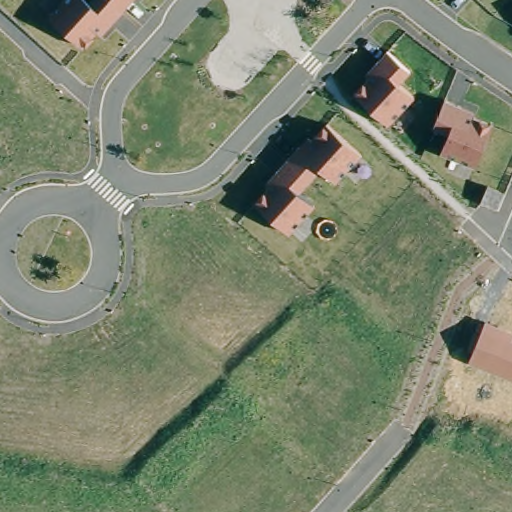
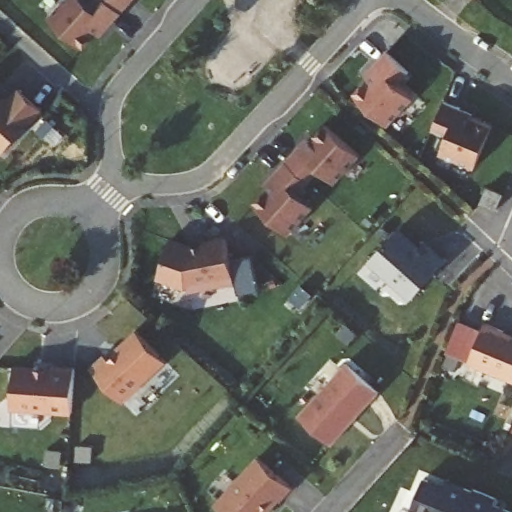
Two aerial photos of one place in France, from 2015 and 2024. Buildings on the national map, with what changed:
unchanged [(95,34),(82,49),(48,18),(65,0),(87,0),(88,0),(129,0),(98,35),(95,34)]
unchanged [(408,72),(397,84),(411,97),(386,125),(351,94),(361,83),(358,79),(386,48),(408,72)]
new [(8,103),(20,89),(42,109),(3,153),(0,150),(0,95),(8,103)]
unchanged [(476,113),(474,118),(491,125),(476,169),(440,154),(445,139),(429,133),(443,100),(476,113)]
unchanged [(360,154),(333,184),(319,170),(299,193),(313,206),(288,233),(253,202),(325,123),(360,154)]
new [(446,260),(411,300),(369,264),(399,230),(426,254),(432,248),(446,260)]
new [(189,289),(184,290),(157,282),(171,238),(194,245),(202,244),(201,241),(226,237),(235,284),(190,293),(189,289)]
new [(483,329),(470,363),(460,359),(455,372),(443,367),(448,354),(445,354),(458,320),(483,329)]
unchanged [(469,366),(486,323),(512,332),(512,381),(469,366)]
new [(102,356),(107,360),(118,352),(116,349),(136,330),(167,361),(123,404),(89,369),(102,356)]
new [(380,393),(331,447),(298,416),(347,363),(380,393)]
new [(53,368),(53,364),(76,366),(72,414),(11,409),(15,364),(53,368)]
new [(294,488),(282,502),(279,500),(268,512),(223,512),(215,504),(256,456),(294,488)]
new [(448,489),(451,482),(495,504),(490,512),(423,512),(414,508),(428,479),(448,489)]

